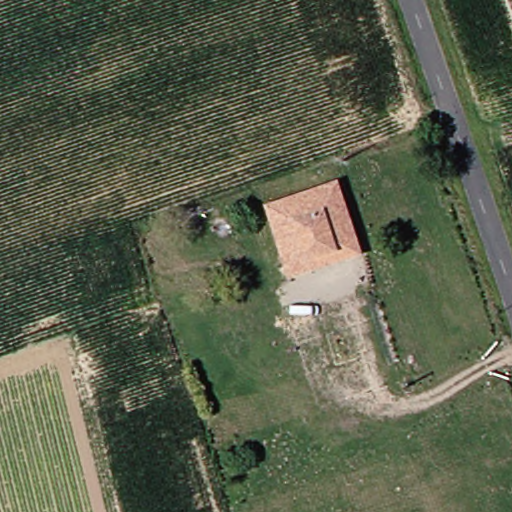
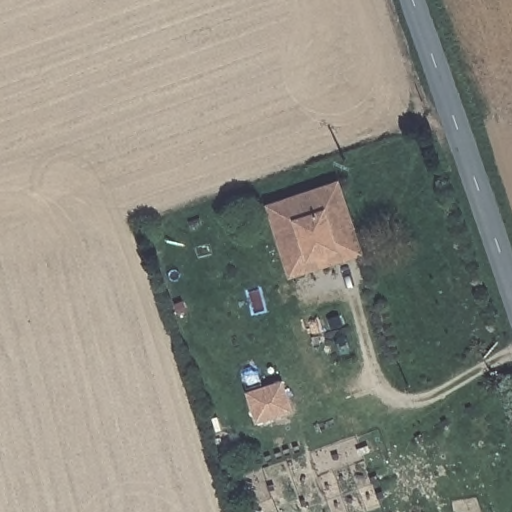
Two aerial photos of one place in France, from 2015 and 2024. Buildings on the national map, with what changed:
unchanged [(365,253),(288,279),(264,203),(340,178),(365,253)]
new [(245,391),(283,379),(293,412),(255,423),(245,391)]

